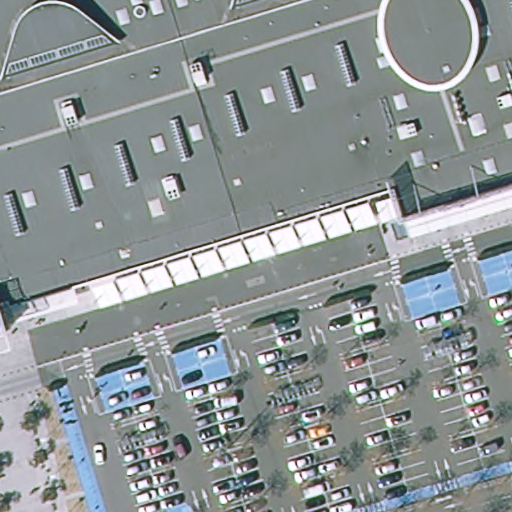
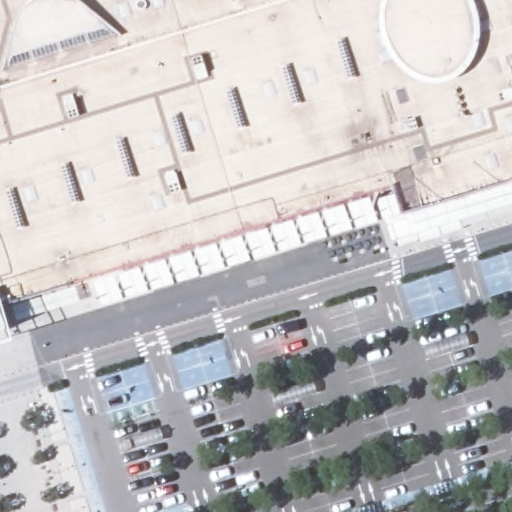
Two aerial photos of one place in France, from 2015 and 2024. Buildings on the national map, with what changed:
unchanged [(403,216),(394,187),(75,285),(49,292),(11,304),(10,299),(0,302),(0,0),(512,0),(512,182),(403,216)]
unchanged [(0,304),(8,330),(0,332),(0,304)]

